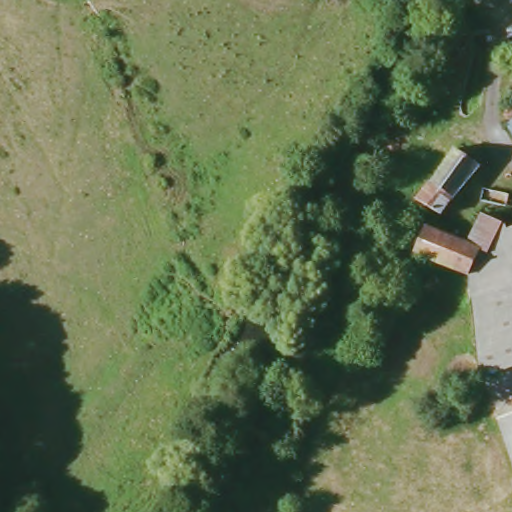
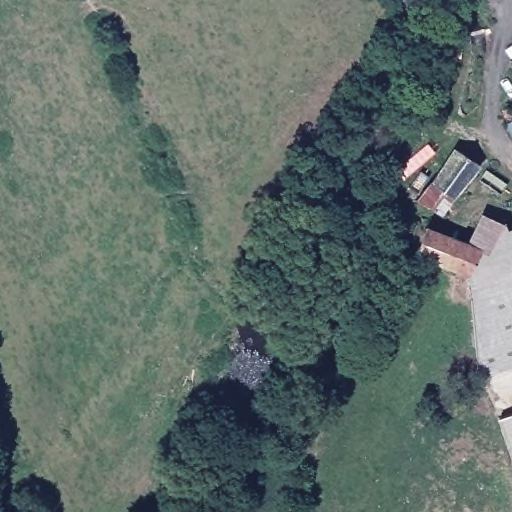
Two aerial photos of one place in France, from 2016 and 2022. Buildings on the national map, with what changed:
unchanged [(444,217),(425,200),(462,150),(465,146),(486,164),(444,217)]
unchanged [(507,223),(506,227),(494,252),(485,249),(472,272),(428,252),(424,251),(435,226),(474,242),(489,213),(507,223)]
unchanged [(510,258),(512,263),(512,287),(475,304),(472,272),(485,249),(494,252),(506,227),(512,224),(512,258),(510,258)]
unchanged [(510,258),(512,258),(512,263),(510,258)]
unchanged [(503,370),(475,304),(512,287),(512,366),(503,370)]
unchanged [(497,422),(512,416),(512,459),(497,422)]

